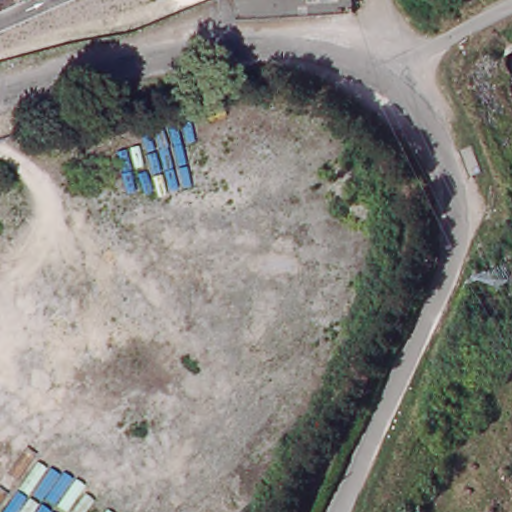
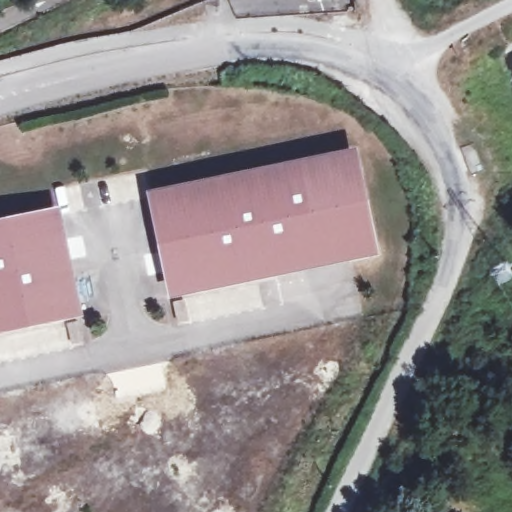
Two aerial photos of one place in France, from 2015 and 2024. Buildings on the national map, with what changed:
new [(146,192),(353,148),(377,257),(167,300),(146,192)]
new [(57,208),(81,317),(0,335),(0,220),(57,208)]

